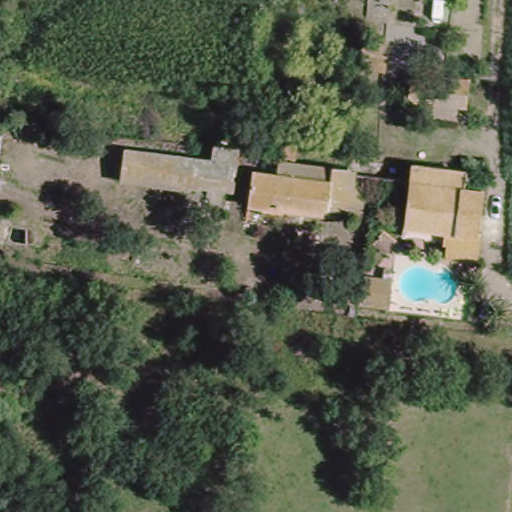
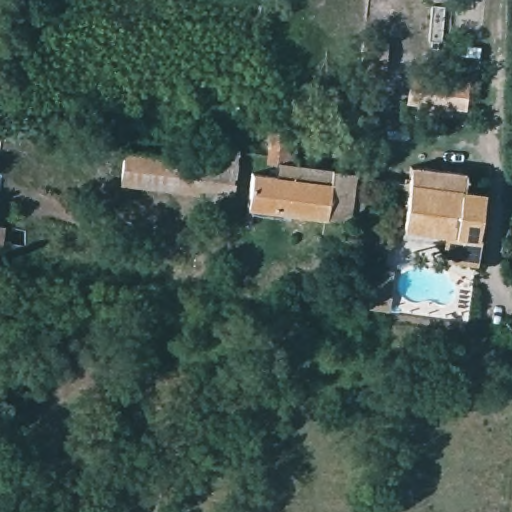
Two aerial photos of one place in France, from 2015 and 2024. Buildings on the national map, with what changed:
unchanged [(478,66),(449,63),(455,0),(485,0),(478,66)]
unchanged [(373,70),(352,67),(357,36),(377,40),(373,70)]
unchanged [(465,110),(408,101),(410,79),(467,87),(465,110)]
unchanged [(254,206),(259,171),(279,175),(281,160),(266,158),(272,123),(299,129),(293,162),(375,174),(369,221),(254,206)]
unchanged [(226,189),(203,185),(209,147),(234,152),(226,189)]
unchanged [(190,191),(119,181),(125,150),(195,161),(190,191)]
unchanged [(476,236),(406,231),(411,169),(465,172),(464,193),(480,195),(476,236)]
unchanged [(5,240),(0,240),(0,225),(7,226),(5,240)]
unchanged [(350,300),(324,296),(328,273),(353,277),(383,281),(380,304),(350,300)]

